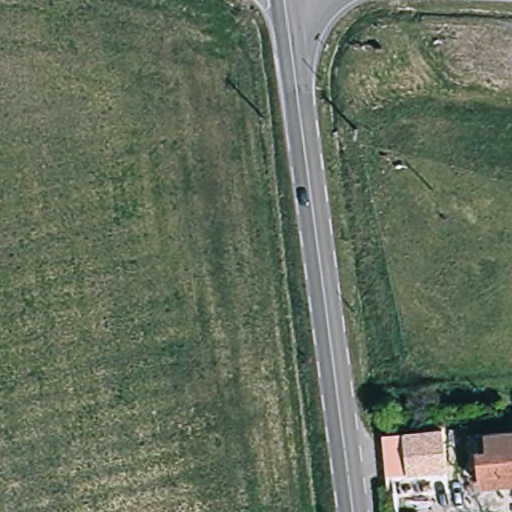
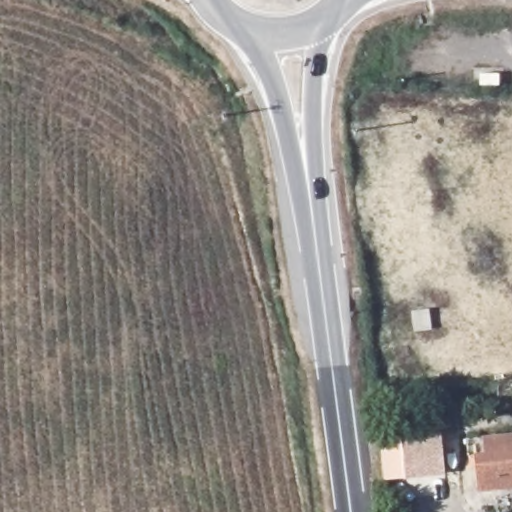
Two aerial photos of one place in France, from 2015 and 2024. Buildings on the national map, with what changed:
unchanged [(385,479),(381,437),(441,431),(445,474),(385,479)]
unchanged [(483,455),(474,454),(472,436),(512,432),(512,485),(485,489),(483,455)]

